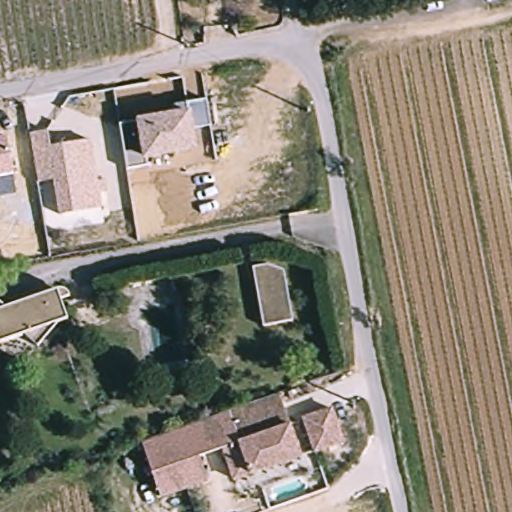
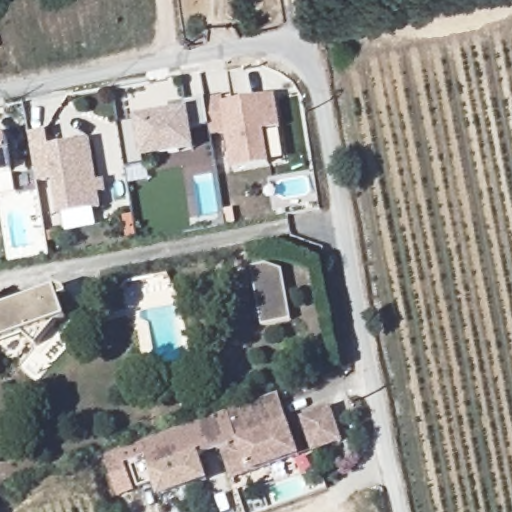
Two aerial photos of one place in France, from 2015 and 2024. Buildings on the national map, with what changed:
new [(207,99),(222,96),(225,104),(276,96),(283,129),(266,132),(272,166),(234,174),(226,135),(214,137),(212,128),(208,101),(207,99)]
unchanged [(195,126),(200,154),(144,161),(127,167),(121,125),(137,120),(178,113),(177,106),(208,101),(212,128),(195,126)]
unchanged [(97,181),(106,179),(106,192),(100,193),(102,208),(59,215),(54,180),(38,184),(30,135),(48,130),(50,147),(90,138),(97,181)]
unchanged [(11,174),(0,176),(0,139),(6,139),(11,174)]
unchanged [(259,317),(247,258),(262,255),(278,260),(288,311),(259,317)]
unchanged [(62,287),(69,318),(55,322),(44,344),(30,330),(0,338),(0,293),(11,301),(62,287)]
unchanged [(300,458),(233,481),(223,450),(240,444),(229,412),(279,395),(300,458)]
unchanged [(298,415),(326,405),(337,438),(309,448),(298,415)]
unchanged [(240,444),(223,450),(199,458),(207,481),(160,498),(141,442),(229,412),(240,444)]

